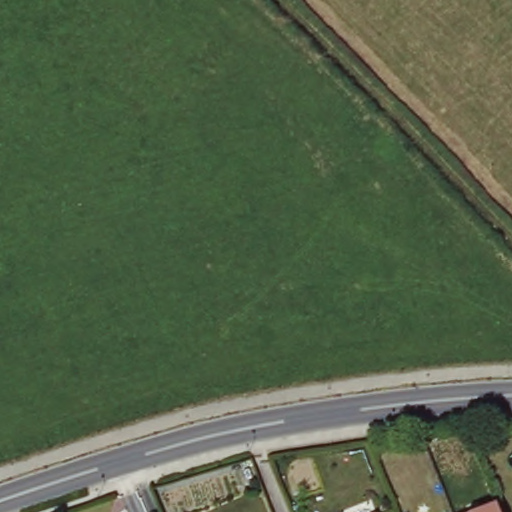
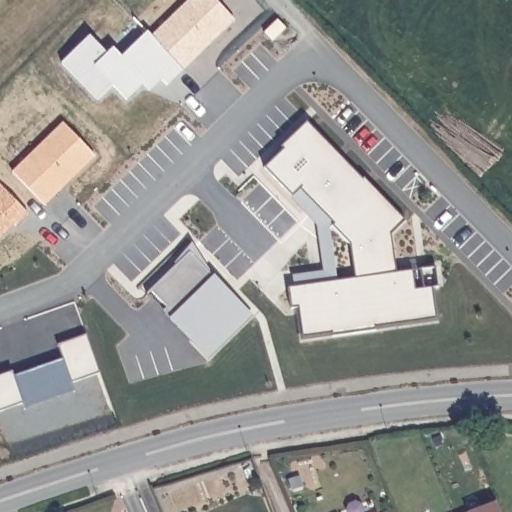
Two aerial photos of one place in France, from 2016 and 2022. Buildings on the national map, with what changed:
new [(217,0),(234,17),(184,70),(151,35),(187,0),(217,0)]
new [(277,20),(285,27),(272,41),(264,33),(277,20)]
new [(89,37),(106,54),(113,48),(122,57),(147,33),(182,71),(167,85),(161,80),(148,91),(142,85),(126,100),(112,85),(96,100),(61,64),(89,37)]
new [(47,204),(14,170),(64,120),(97,153),(47,204)]
new [(374,326),(374,330),(329,335),(329,331),(303,335),(298,303),(291,305),(289,288),(295,287),(293,275),(323,271),(317,224),(290,195),(265,167),(285,149),(282,146),(307,122),(404,221),(389,235),(394,272),(410,270),(413,290),(433,287),(438,318),(374,326)]
new [(208,359),(168,320),(173,315),(150,290),(189,252),(214,276),(251,315),(208,359)]
new [(70,381),(73,390),(22,407),(21,401),(0,409),(0,375),(11,371),(12,376),(63,357),(58,345),(86,335),(98,371),(70,381)]
unchanged [(498,512),(472,512),(494,503),(498,512)]

